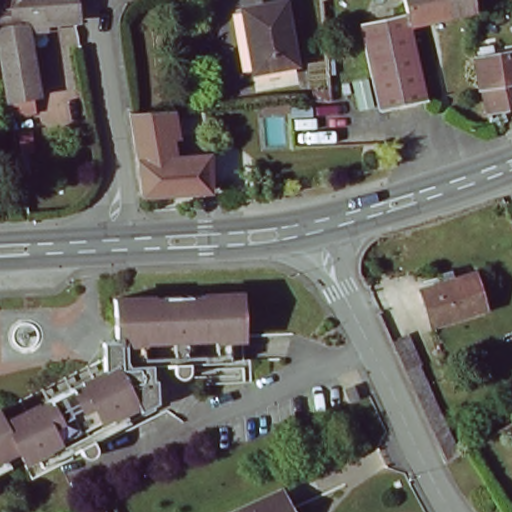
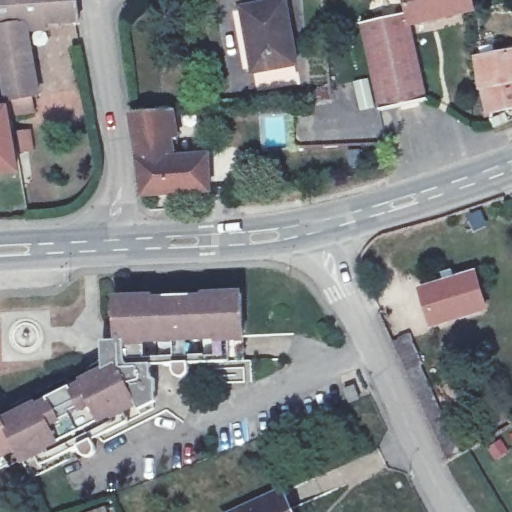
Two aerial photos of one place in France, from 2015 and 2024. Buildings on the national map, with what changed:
unchanged [(83,21),(78,21),(50,22),(50,29),(33,30),(43,95),(9,99),(0,43),(0,0),(80,0),(83,21)]
unchanged [(473,9),(415,24),(429,100),(381,109),(365,21),(412,13),(408,0),(471,0),(473,5),(473,9)]
unchanged [(288,1),(298,65),(256,70),(246,7),(288,1)]
unchanged [(480,85),(474,59),(496,55),(512,53),(512,79),(482,85),(480,85)]
unchanged [(488,109),(482,85),(512,79),(512,105),(488,109)]
unchanged [(331,99),(316,100),(315,89),(330,89),(331,99)]
unchanged [(288,101),(289,112),(267,114),(266,103),(288,101)]
new [(20,169),(0,170),(0,107),(10,106),(20,169)]
unchanged [(150,200),(138,122),(136,116),(168,115),(178,114),(183,145),(178,145),(181,162),(175,162),(176,198),(150,200)]
unchanged [(274,141),(273,124),(289,122),(291,140),(274,141)]
unchanged [(366,145),(393,144),(394,165),(369,172),(366,145)]
unchanged [(175,162),(181,162),(213,160),(216,195),(216,196),(176,198),(175,162)]
unchanged [(355,264),(368,258),(373,270),(360,275),(355,264)]
unchanged [(477,273),(489,311),(433,329),(421,290),(477,273)]
unchanged [(152,378),(153,396),(150,394),(132,382),(123,384),(123,382),(116,370),(100,378),(99,361),(98,342),(113,341),(112,298),(238,293),(240,335),(241,360),(186,362),(186,365),(187,366),(186,368),(186,370),(185,372),(183,374),(181,375),(178,375),(176,375),(174,375),(173,373),(171,371),(171,370),(170,367),(170,366),(171,365),(171,363),(147,364),(148,379),(152,378)]
unchanged [(116,370),(123,382),(123,384),(132,382),(150,394),(153,396),(153,411),(141,417),(143,423),(104,443),(98,440),(91,444),(94,446),(95,450),(95,452),(95,455),(93,457),(91,459),(88,460),(85,460),(83,459),(81,457),(80,455),(79,452),(79,451),(71,455),(70,460),(29,480),(20,462),(20,461),(13,447),(1,425),(100,378),(116,370)]
unchanged [(350,386),(356,398),(346,402),(340,390),(350,386)]
unchanged [(0,422),(1,425),(13,447),(20,461),(0,471),(0,422)]
unchanged [(291,512),(240,512),(283,493),(291,512)]

